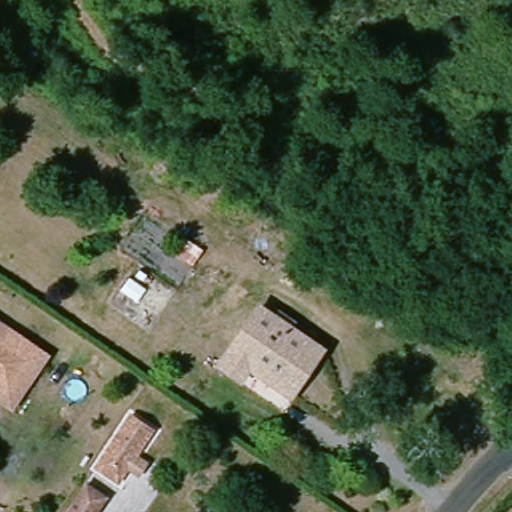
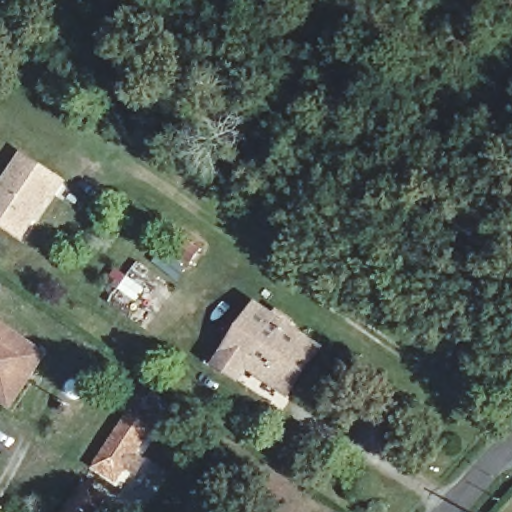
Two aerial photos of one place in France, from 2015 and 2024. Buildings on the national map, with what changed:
new [(0,227),(0,194),(24,159),(65,186),(55,201),(51,199),(42,213),(31,228),(22,242),(0,227)]
unchanged [(287,397),(275,389),(260,378),(267,366),(253,356),(241,371),(235,381),(210,364),(217,354),(253,303),(308,342),(319,352),(287,397)]
unchanged [(15,370),(11,367),(0,384),(0,326),(31,347),(15,370)]
unchanged [(0,401),(0,384),(11,367),(15,370),(31,347),(39,352),(4,403),(0,401)]
unchanged [(150,426),(114,481),(90,465),(127,412),(150,426)]
unchanged [(104,496),(93,512),(61,512),(82,480),(104,496)]

